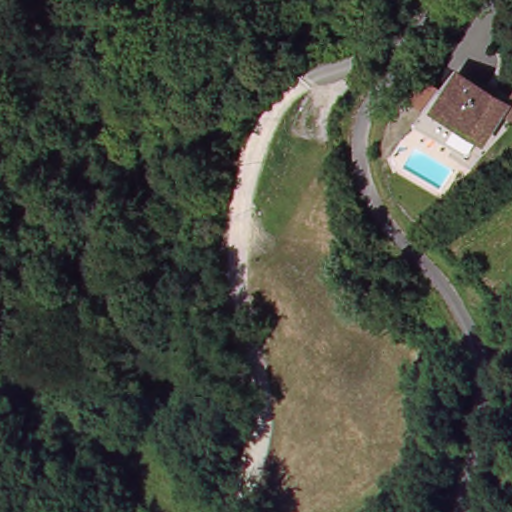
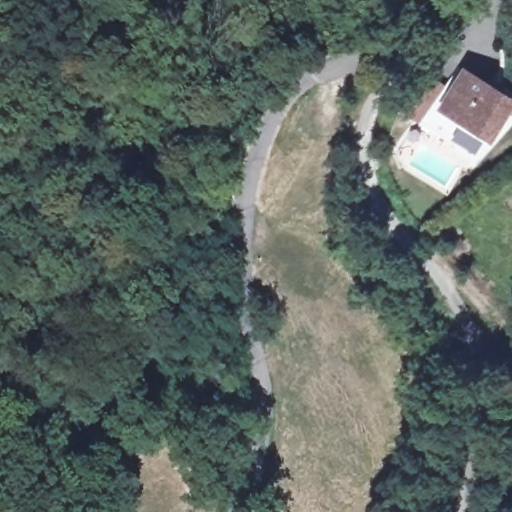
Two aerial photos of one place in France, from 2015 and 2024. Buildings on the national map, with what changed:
unchanged [(507,107),(503,113),(482,141),(437,106),(462,72),(507,107)]

